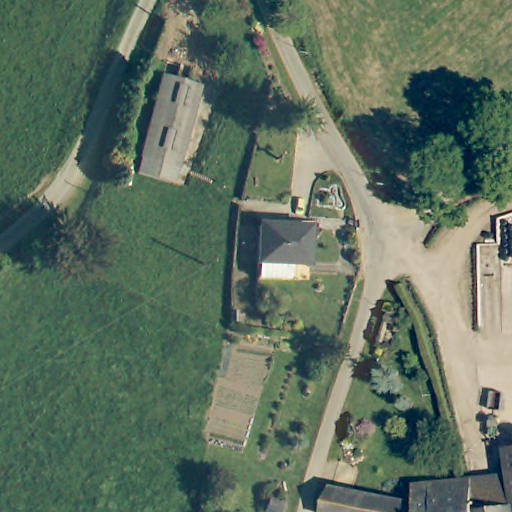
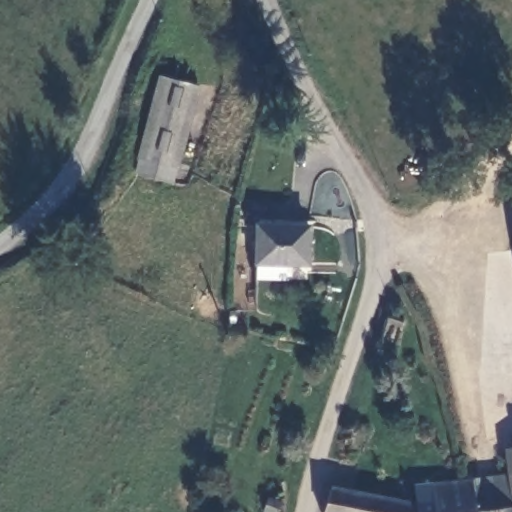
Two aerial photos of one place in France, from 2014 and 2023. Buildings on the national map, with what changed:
unchanged [(200,86),(174,184),(139,173),(162,77),(200,86)]
unchanged [(291,275),(259,275),(259,260),(260,223),(309,222),(311,260),(293,260),(293,273),(291,275)]
unchanged [(508,441),(512,441),(512,467),(508,441)]
unchanged [(422,499),(422,480),(467,476),(467,466),(475,464),(476,473),(481,506),(512,502),(512,512),(328,512),(337,482),(422,499)]
unchanged [(481,506),(476,473),(512,467),(512,502),(481,506)]
unchanged [(280,512),(264,512),(261,511),(266,494),(284,500),(280,512)]

